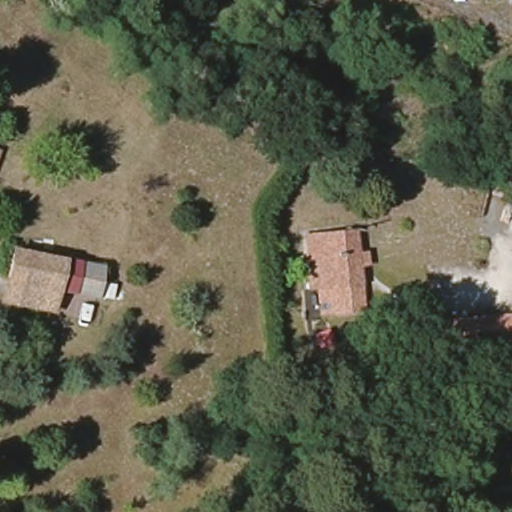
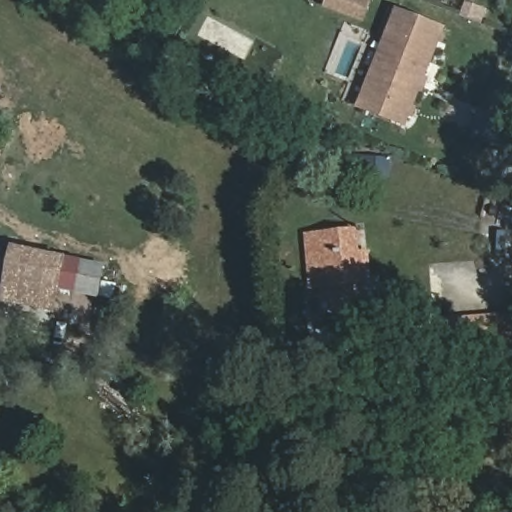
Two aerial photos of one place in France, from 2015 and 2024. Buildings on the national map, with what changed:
new [(429,78),(423,94),(420,92),(415,107),(417,107),(413,120),(409,117),(405,129),(355,107),(395,7),(446,27),(426,77),(429,78)]
demolished [(435,100),(428,110),(413,97),(420,89),(435,100)]
unchanged [(406,190),(387,192),(383,159),(404,165),(406,190)]
unchanged [(42,190),(27,181),(35,169),(50,177),(42,190)]
unchanged [(330,321),(323,307),(323,293),(308,293),(305,256),(326,254),(326,238),(328,237),(353,235),(368,315),(330,321)]
unchanged [(67,261),(104,267),(97,298),(61,294),(52,313),(0,303),(13,250),(67,261)]
new [(492,354),(437,360),(434,323),(512,317),(512,348),(492,351),(492,354)]

